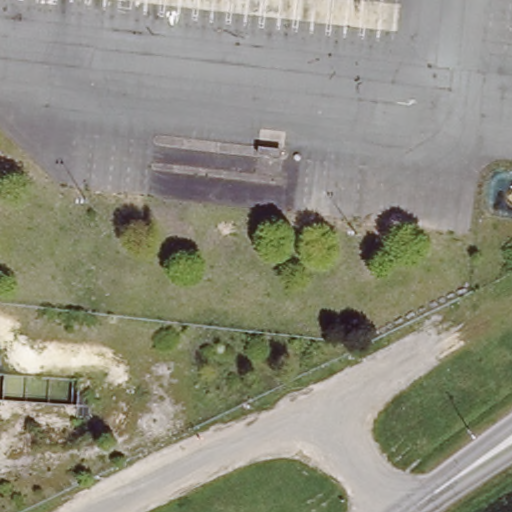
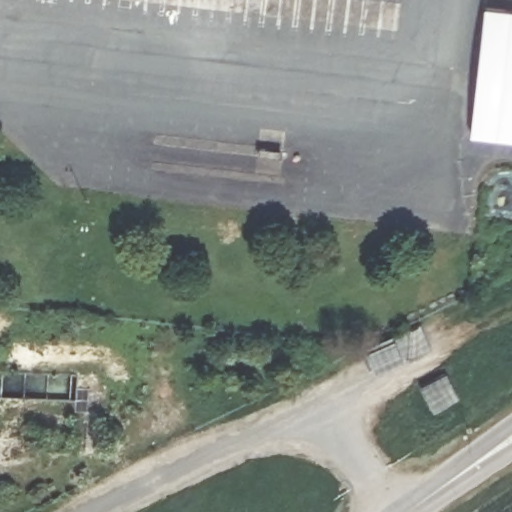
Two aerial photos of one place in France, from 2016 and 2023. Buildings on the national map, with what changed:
new [(483,4),(512,8),(512,138),(470,133),(483,4)]

